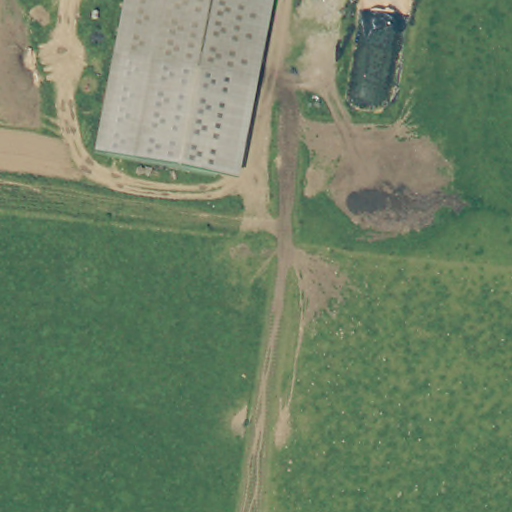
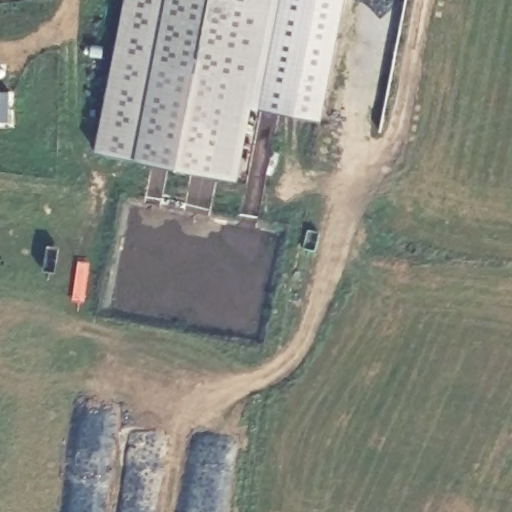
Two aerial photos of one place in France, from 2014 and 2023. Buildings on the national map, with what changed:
unchanged [(222,178),(101,157),(127,0),(253,0),(222,178)]
new [(321,120),(252,107),(238,180),(222,178),(253,0),(345,0),(321,120)]

